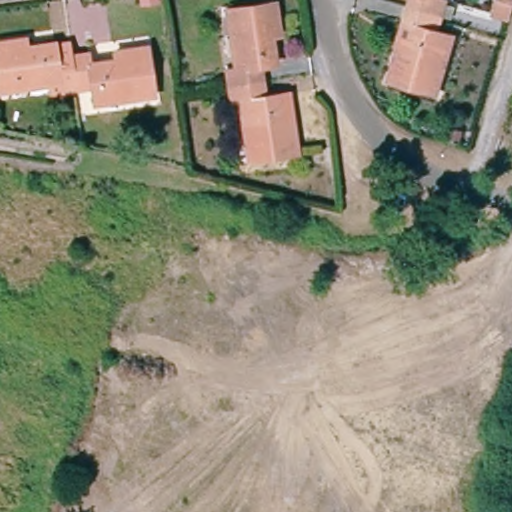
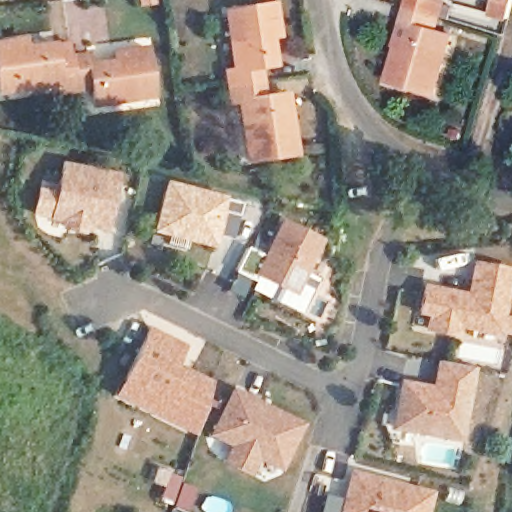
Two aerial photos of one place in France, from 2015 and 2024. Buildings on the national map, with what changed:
unchanged [(407,0),(440,0),(435,14),(405,5),(407,0)]
unchanged [(493,14),(498,0),(512,0),(512,19),(493,14)]
unchanged [(216,68),(225,65),(219,9),(269,3),(273,32),(265,33),(266,61),(250,64),(253,81),(219,85),(216,68)]
unchanged [(430,33),(447,38),(431,92),(383,78),(392,46),(398,49),(405,25),(400,24),(405,5),(435,14),(430,33)]
unchanged [(51,89),(0,94),(0,46),(18,44),(21,50),(48,47),(50,62),(65,60),(70,93),(53,95),(51,89)]
unchanged [(65,60),(82,58),(83,65),(108,63),(107,55),(143,51),(150,99),(89,106),(86,90),(70,93),(65,60)]
unchanged [(253,81),(254,94),(270,92),(273,119),(281,119),(284,150),(236,154),(228,97),(221,97),(219,85),(253,81)]
new [(92,229),(82,235),(63,231),(59,224),(60,221),(31,214),(36,187),(54,189),(61,160),(119,173),(106,232),(92,229)]
new [(218,233),(215,245),(171,235),(157,231),(162,213),(170,185),(243,204),(240,217),(234,238),(218,233)]
new [(317,287),(303,316),(267,298),(252,291),(256,283),(237,273),(249,249),(267,258),(284,224),(321,242),(306,274),(320,280),(317,287)]
new [(503,335),(463,328),(461,337),(431,330),(434,316),(424,314),(428,289),(473,297),(479,265),(512,271),(512,288),(506,319),(512,321),(512,337),(503,335)]
new [(147,323),(185,343),(177,359),(213,379),(192,435),(110,396),(147,323)]
new [(405,385),(438,391),(443,363),(477,369),(464,443),(397,431),(405,385)]
new [(212,435),(233,393),(262,407),(270,411),(301,426),(280,469),(258,458),(250,474),(226,462),(234,446),(212,435)]
new [(154,467),(181,478),(180,481),(198,487),(188,512),(157,499),(161,487),(149,483),(154,467)]
new [(355,476),(433,497),(429,512),(346,512),(355,476)]

